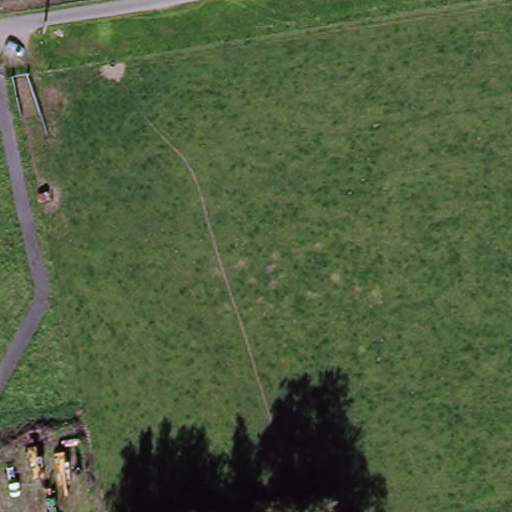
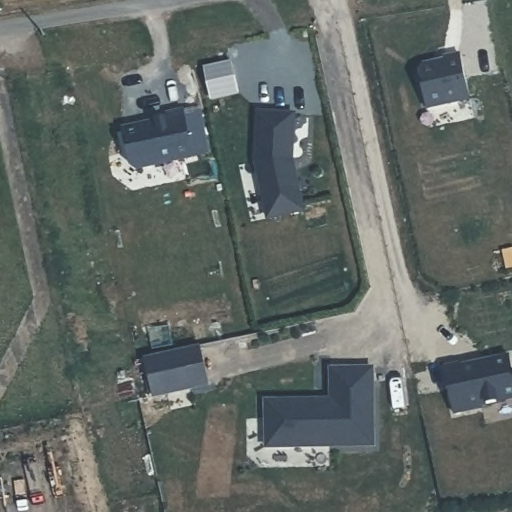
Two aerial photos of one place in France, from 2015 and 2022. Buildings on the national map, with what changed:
new [(424,67),(446,62),(446,60),(462,56),(472,100),(428,110),(419,72),(424,67)]
new [(141,125),(141,127),(154,125),(153,123),(169,120),(168,115),(184,111),(193,159),(136,170),(131,166),(123,129),(141,125)]
new [(259,114),(296,115),(294,157),(289,162),(291,171),(296,170),(304,212),(268,220),(256,162),(259,114)]
new [(461,365),(461,367),(478,364),(479,366),(489,365),(491,361),(512,357),(512,360),(512,400),(482,406),(482,409),(454,415),(444,368),(461,365)]
new [(203,362),(208,386),(154,398),(149,373),(203,362)]
new [(328,401),(333,401),(333,370),(375,369),(376,447),(266,448),(266,401),(328,401)]

